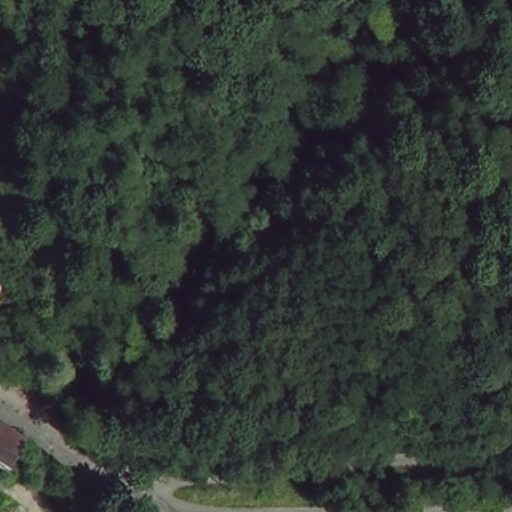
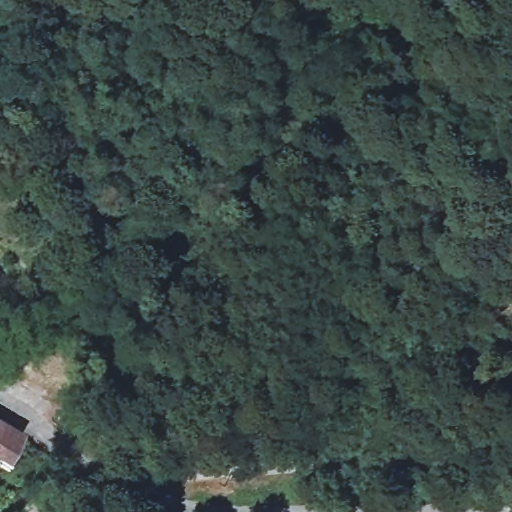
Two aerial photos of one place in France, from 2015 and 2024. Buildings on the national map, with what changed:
unchanged [(0,422),(10,427),(0,445),(0,422)]

